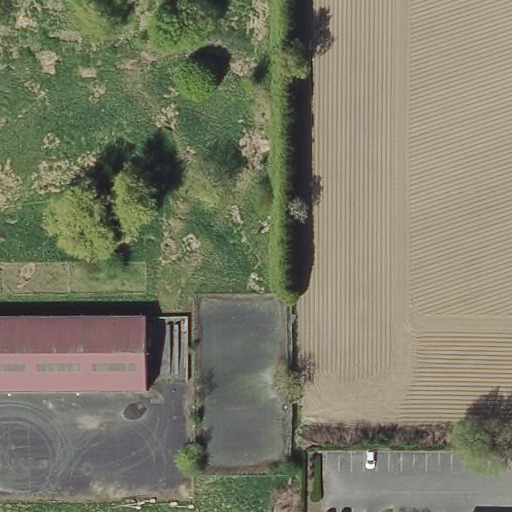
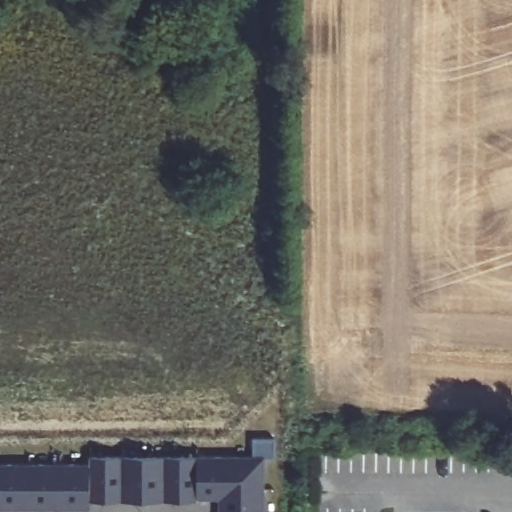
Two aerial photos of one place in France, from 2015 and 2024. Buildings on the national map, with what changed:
demolished [(143,386),(0,388),(0,317),(143,316),(143,386)]
new [(197,499),(197,502),(90,503),(90,510),(0,510),(0,465),(89,466),(89,457),(265,456),(264,512),(217,512),(217,500),(197,499)]

